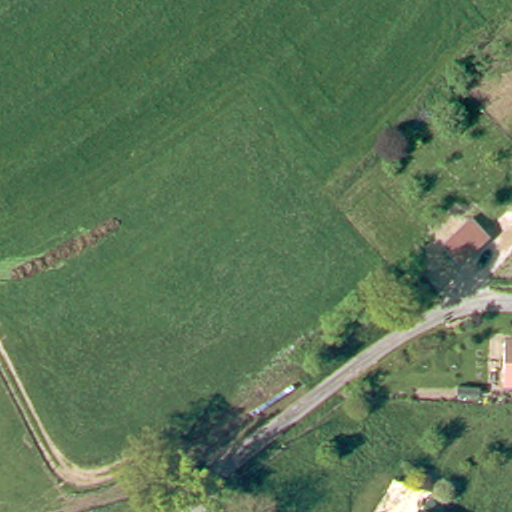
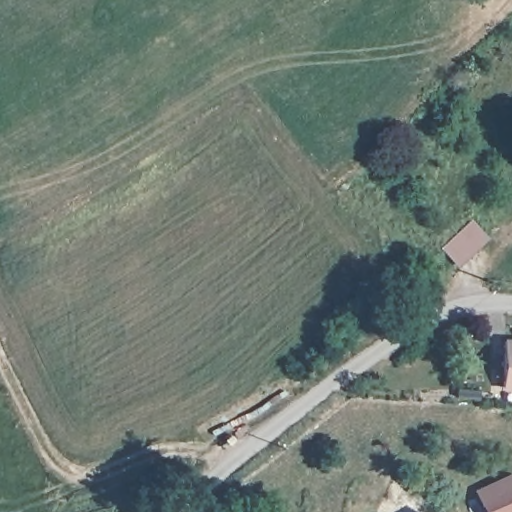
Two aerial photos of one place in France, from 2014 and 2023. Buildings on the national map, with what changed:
unchanged [(512,380),(498,380),(501,334),(512,335),(512,380)]
new [(475,489),(512,471),(512,512),(485,512),(475,489)]

